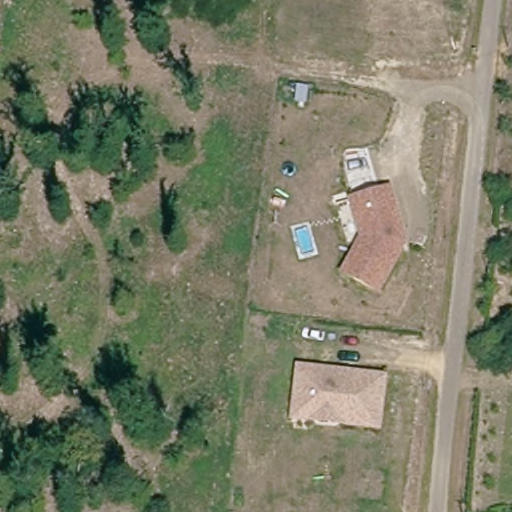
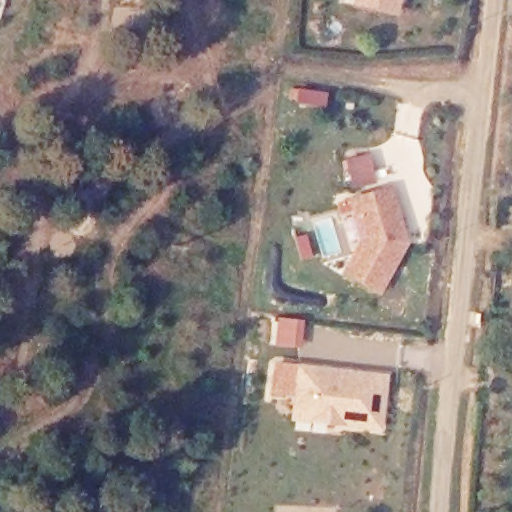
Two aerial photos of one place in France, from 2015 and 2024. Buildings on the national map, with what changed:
new [(349,9),(351,0),(400,0),(398,18),(349,9)]
unchanged [(359,238),(349,199),(391,187),(409,243),(378,296),(340,273),(359,238)]
unchanged [(296,364),(388,375),(382,432),(289,421),(296,364)]

